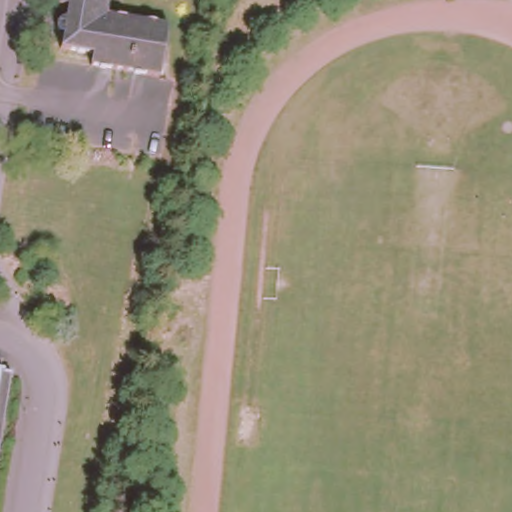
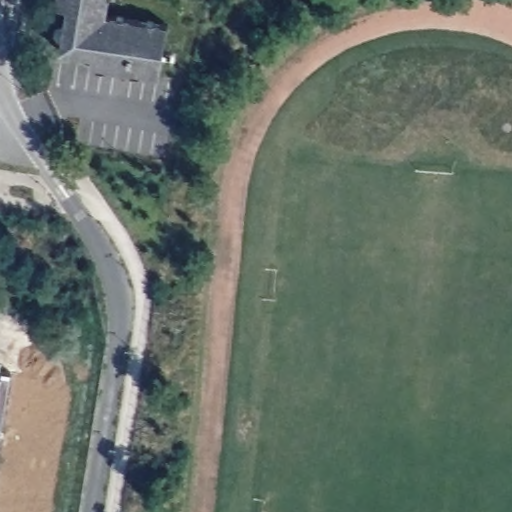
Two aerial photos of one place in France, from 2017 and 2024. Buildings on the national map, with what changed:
unchanged [(163,26),(156,71),(95,64),(95,53),(60,48),(61,40),(57,39),(55,36),(55,31),(56,25),(62,19),(64,9),(57,0),(107,0),(105,18),(163,26)]
unchanged [(1,381),(0,387),(0,380),(1,381)]

